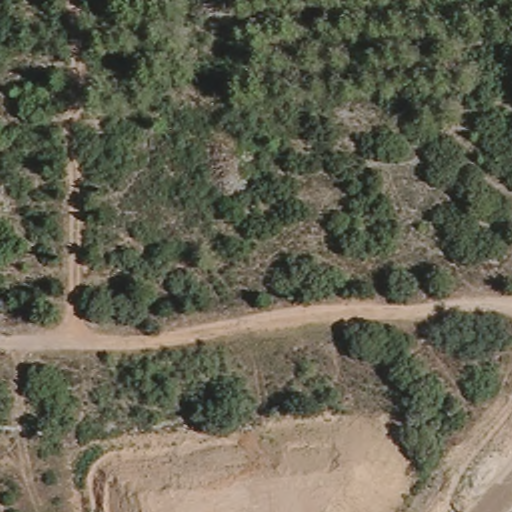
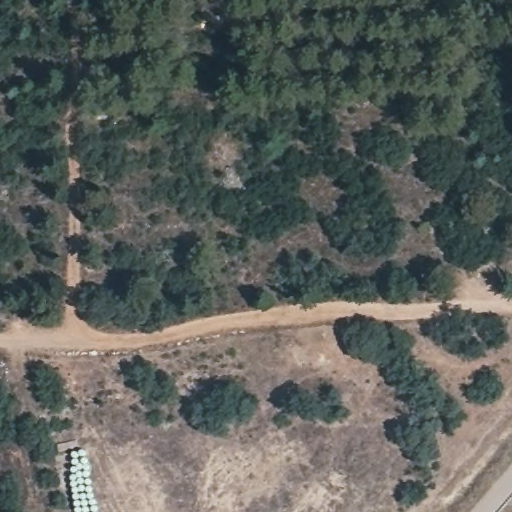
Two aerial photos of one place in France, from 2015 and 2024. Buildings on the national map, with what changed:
[]

